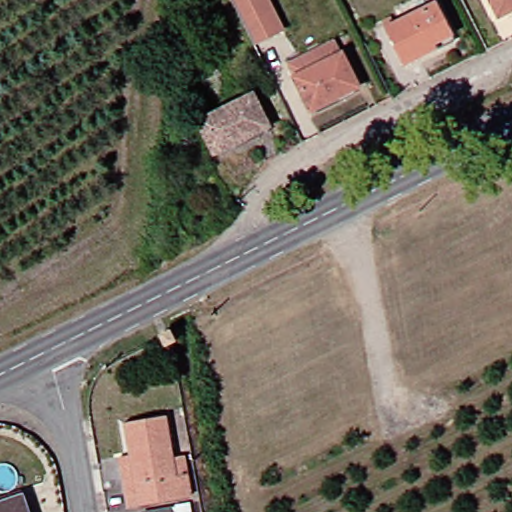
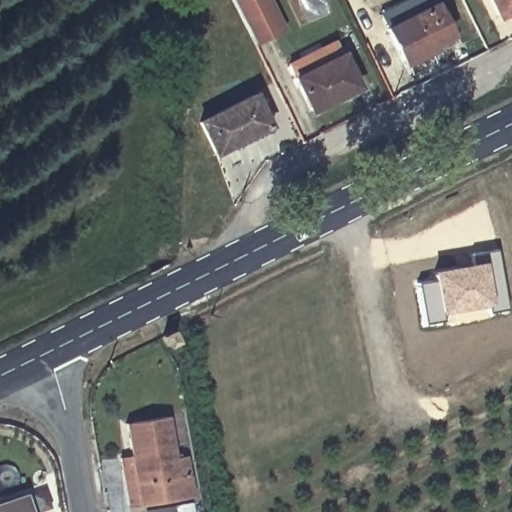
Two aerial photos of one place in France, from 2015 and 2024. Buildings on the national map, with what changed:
unchanged [(286,31),(258,45),(236,0),(271,0),(286,31)]
unchanged [(501,17),(491,0),(512,0),(512,12),(501,17)]
unchanged [(388,29),(437,4),(453,36),(433,45),(436,50),(406,66),(388,29)]
unchanged [(336,38),(361,87),(313,112),(289,62),(336,38)]
unchanged [(249,138),(215,155),(199,122),(254,94),(269,122),(272,127),(249,138)]
new [(431,282),(429,272),(469,263),(468,257),(493,252),(504,310),(486,313),(484,306),(439,315),(441,321),(424,325),(416,283),(431,282)]
unchanged [(128,489),(122,457),(133,456),(127,424),(169,417),(174,457),(185,456),(193,497),(141,505),(131,507),(128,489)]
unchanged [(0,512),(0,505),(24,497),(29,512),(0,512)]
unchanged [(172,507),(172,512),(147,512),(146,511),(172,507)]

